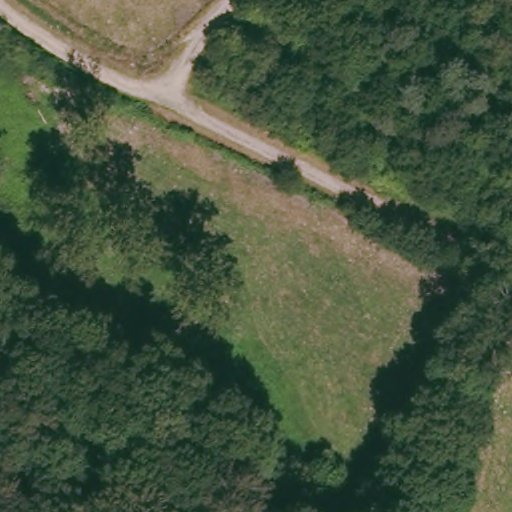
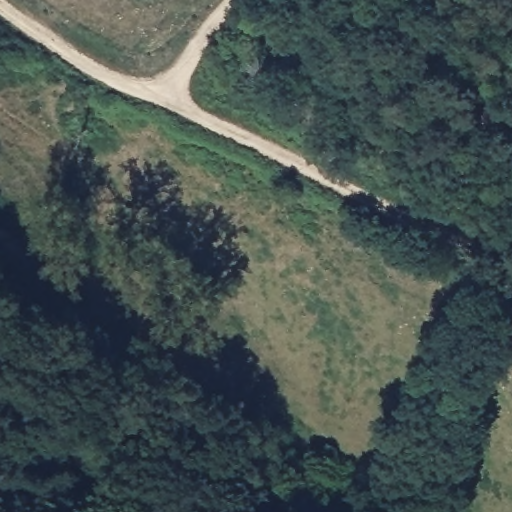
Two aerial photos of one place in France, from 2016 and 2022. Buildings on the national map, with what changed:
unchanged [(471,267),(490,277),(481,303),(457,294),(471,267)]

